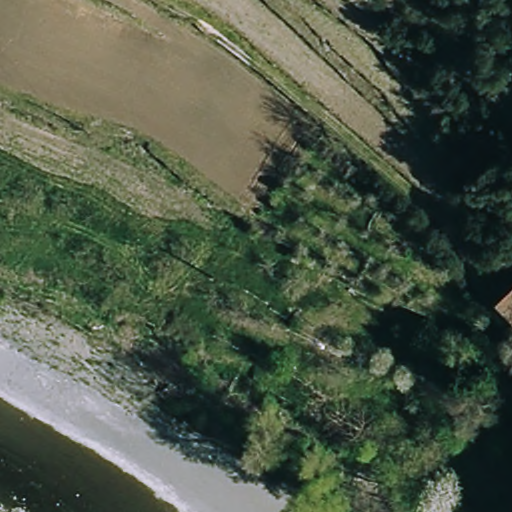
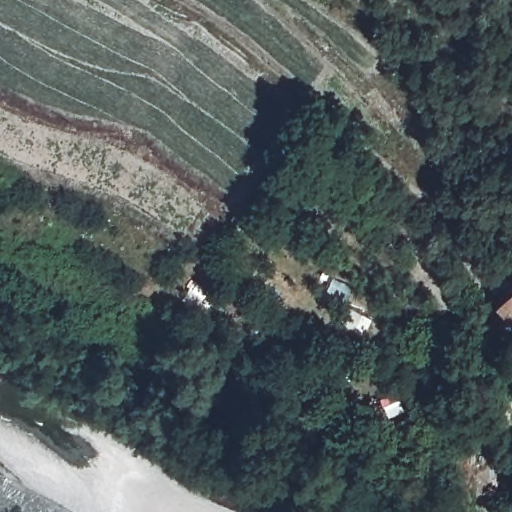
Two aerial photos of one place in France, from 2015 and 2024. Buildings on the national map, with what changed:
unchanged [(497,304),(512,289),(512,320),(497,304)]

